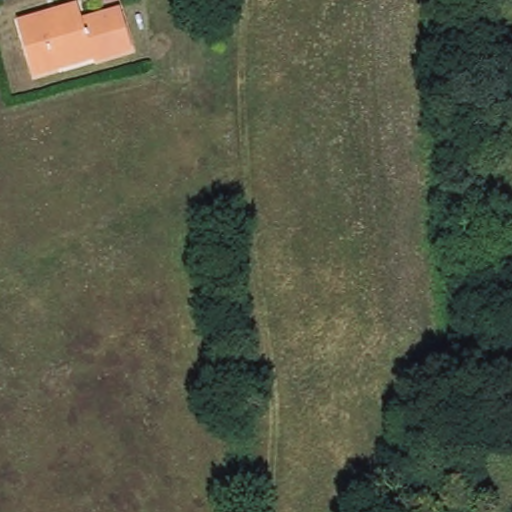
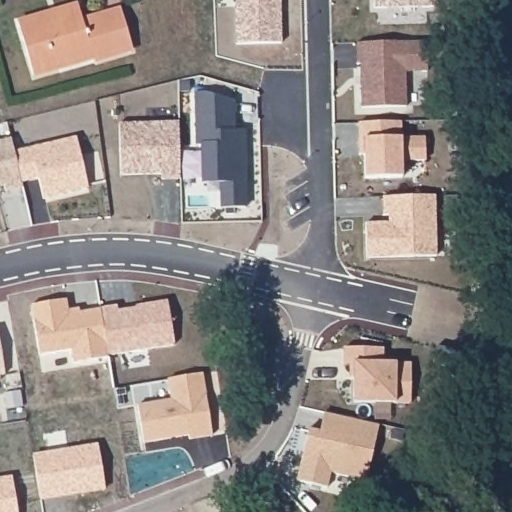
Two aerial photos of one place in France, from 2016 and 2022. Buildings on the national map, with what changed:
new [(282,43),(236,44),(235,0),(281,0),(282,43)]
new [(435,7),(374,8),(374,0),(434,0),(435,7)]
unchanged [(41,16),(42,20),(59,16),(57,12),(78,6),(82,22),(121,11),(132,50),(94,61),(92,53),(59,63),(60,68),(34,75),(17,23),(41,16)]
new [(426,41),(427,71),(405,72),(406,106),(361,108),(360,64),(357,64),(356,42),(426,41)]
new [(205,92),(234,101),(234,130),(245,130),(246,207),(221,208),(221,183),(203,183),(202,145),(197,145),(195,93),(205,92)]
new [(425,160),(401,161),(402,177),(365,178),(365,154),(360,155),(360,140),(359,123),(423,121),(425,160)]
new [(179,122),(180,178),(162,179),(162,174),(120,175),(120,123),(179,122)]
new [(76,136),(88,188),(44,198),(39,178),(21,182),(14,151),(76,136)]
new [(20,180),(0,185),(0,141),(11,138),(20,180)]
new [(388,223),(388,215),(384,215),(383,197),(436,195),(436,257),(366,258),(365,223),(388,223)]
new [(108,356),(74,363),(71,349),(39,354),(31,304),(66,299),(69,314),(100,309),(108,356)]
new [(117,306),(118,311),(136,308),(136,306),(167,301),(175,344),(108,356),(100,309),(117,306)]
new [(0,377),(0,344),(5,376),(0,377)]
new [(437,345),(465,351),(460,369),(434,363),(437,345)]
new [(344,348),(383,349),(383,363),(411,364),(410,403),(354,402),(355,364),(344,364),(344,348)]
new [(171,400),(168,379),(202,373),(212,435),(190,439),(189,435),(144,443),(137,405),(171,400)]
new [(308,429),(320,432),(325,412),(379,424),(366,480),(330,472),(327,487),(296,481),(308,429)]
new [(98,446),(105,489),(40,500),(34,456),(98,446)]
new [(17,512),(0,512),(0,480),(11,478),(17,512)]

